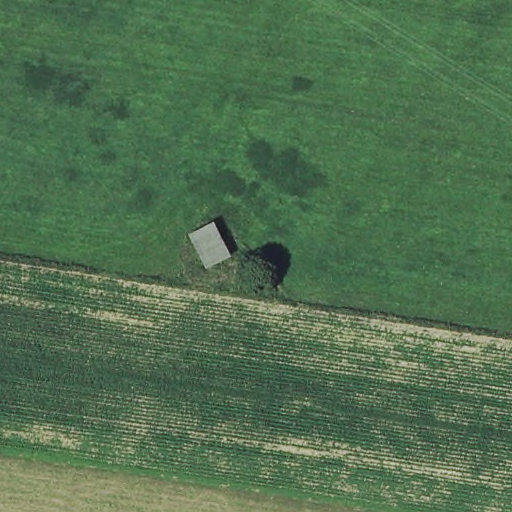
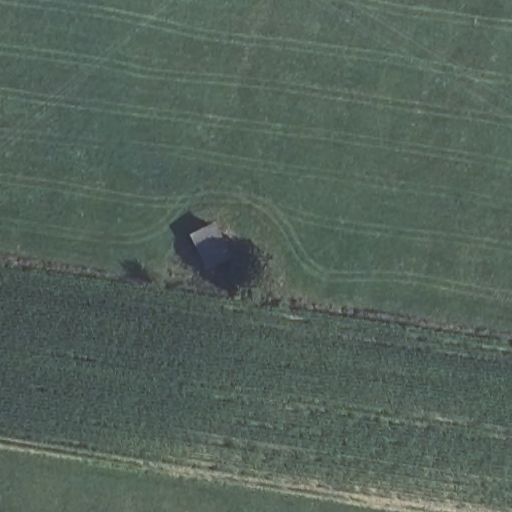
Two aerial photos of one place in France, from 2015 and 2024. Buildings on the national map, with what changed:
unchanged [(188,235),(212,223),(234,259),(208,269),(188,235)]

